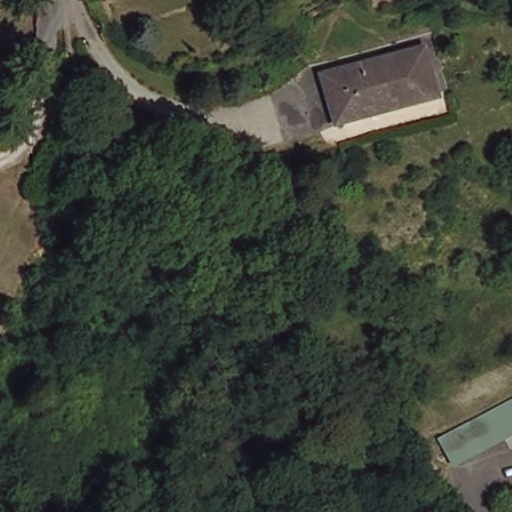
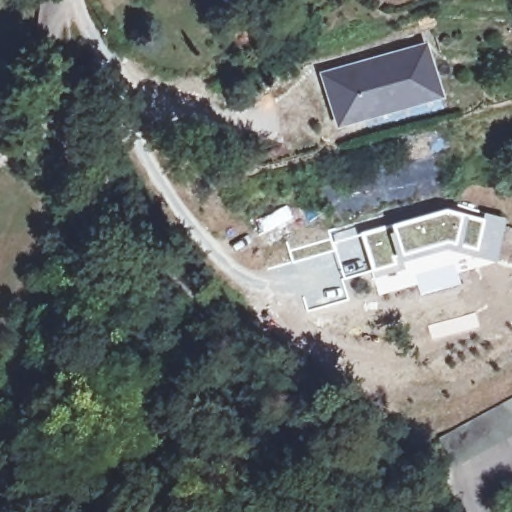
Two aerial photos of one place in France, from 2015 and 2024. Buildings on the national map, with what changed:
unchanged [(332,110),(322,74),(425,45),(437,90),(360,113),(362,117),(342,124),(337,125),(332,110)]
new [(446,207),(483,215),(485,211),(507,217),(495,262),(445,249),(440,250),(430,252),(430,250),(400,259),(390,222),(446,207)]
new [(357,224),(359,231),(390,222),(400,259),(402,265),(342,279),(328,230),(357,224)]
unchanged [(312,387),(303,378),(311,370),(321,377),(312,387)]

